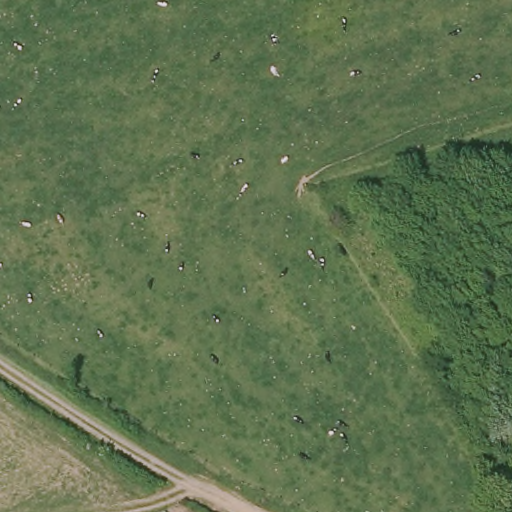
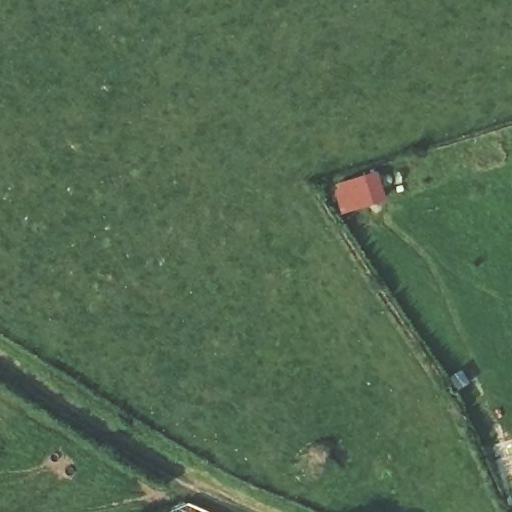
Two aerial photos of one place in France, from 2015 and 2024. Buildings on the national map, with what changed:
new [(340,218),(332,188),(375,175),(385,204),(372,208),(340,218)]

